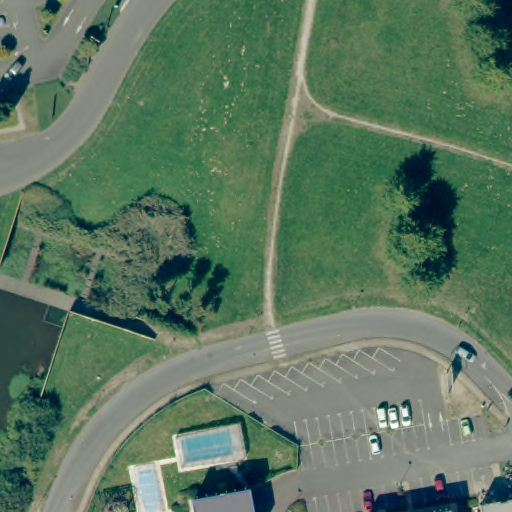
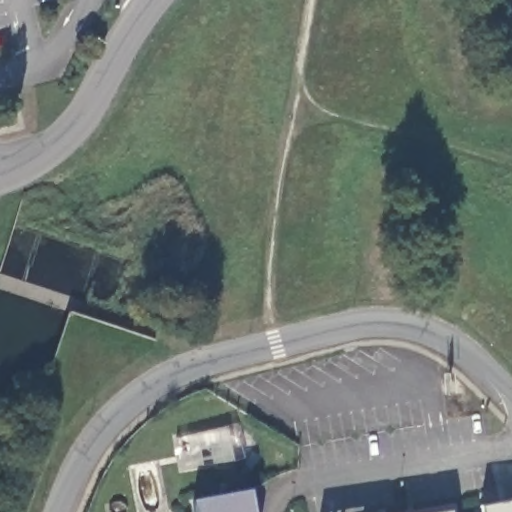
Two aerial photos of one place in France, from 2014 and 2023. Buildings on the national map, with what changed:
unchanged [(250,512),(205,512),(203,497),(247,490),(250,512)]
unchanged [(512,494),(512,512),(481,512),(479,500),(512,494)]
unchanged [(451,512),(411,512),(450,505),(451,512)]

